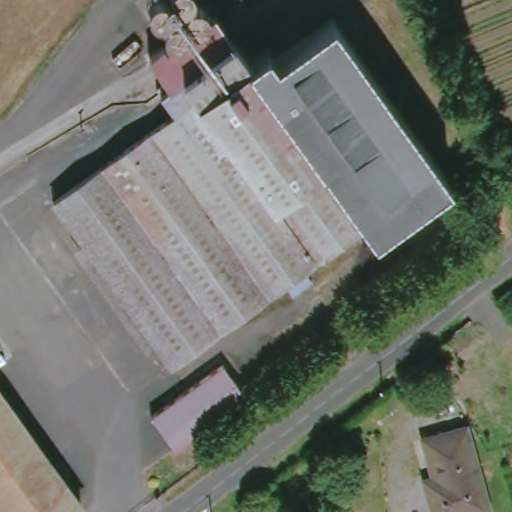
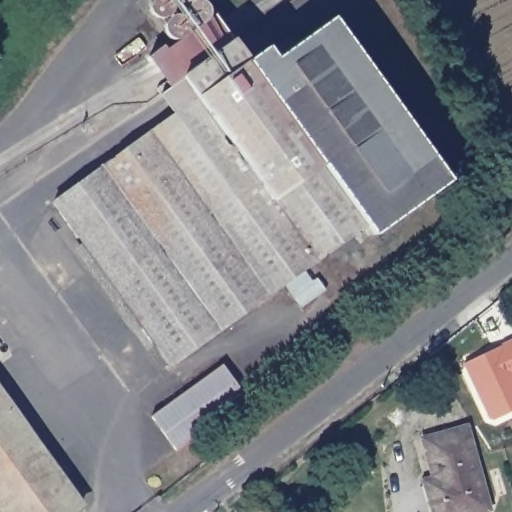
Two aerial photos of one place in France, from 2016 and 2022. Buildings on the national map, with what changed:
unchanged [(158,0),(201,0),(209,11),(218,22),(177,50),(167,36),(147,9),(158,0)]
unchanged [(280,62),(337,19),(453,182),(379,236),(371,227),(253,64),(272,50),(280,62)]
unchanged [(142,69),(167,50),(175,61),(226,27),(246,54),(253,64),(179,116),(170,105),(142,69)]
unchanged [(179,116),(253,64),(371,227),(174,365),(57,202),(179,116)]
new [(488,417),(462,364),(512,340),(512,411),(493,419),(488,417)]
unchanged [(179,457),(155,422),(225,372),(250,405),(179,457)]
unchanged [(69,512),(15,512),(2,494),(0,495),(0,384),(84,501),(69,512)]
unchanged [(492,509),(481,512),(437,512),(434,502),(443,498),(427,440),(469,428),(492,509)]

